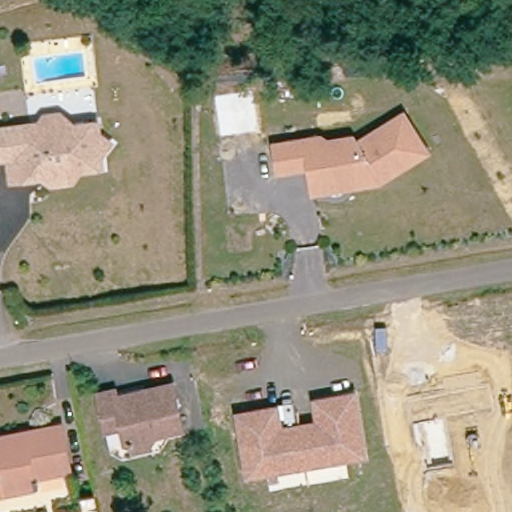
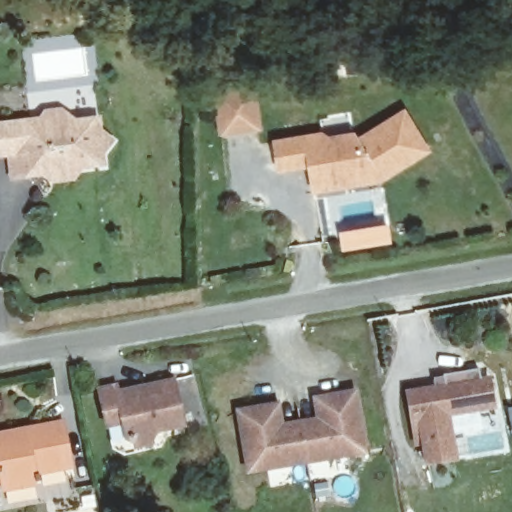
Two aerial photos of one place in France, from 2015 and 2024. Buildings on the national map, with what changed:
new [(256,81),(264,131),(218,137),(211,88),(256,81)]
unchanged [(310,164),(280,171),(273,146),(320,134),(326,138),(350,131),(355,138),(399,106),(425,141),(380,174),(316,189),(310,164)]
unchanged [(58,178),(56,170),(36,174),(19,178),(13,154),(0,156),(0,128),(46,118),(44,111),(60,108),(74,119),(97,114),(99,125),(112,133),(104,146),(107,157),(84,162),(79,173),(58,178)]
new [(496,410),(450,418),(457,461),(428,466),(424,448),(415,449),(407,393),(447,386),(444,377),(480,371),(481,380),(490,378),(496,410)]
unchanged [(182,428),(161,433),(157,439),(134,443),(126,438),(121,423),(102,427),(95,391),(114,388),(116,395),(171,384),(182,428)]
unchanged [(275,408),(279,432),(318,425),(314,401),(352,395),(362,455),(248,474),(237,414),(275,408)]
unchanged [(60,473),(31,477),(32,488),(4,492),(3,483),(0,483),(0,435),(63,425),(67,449),(71,472),(60,473)]

